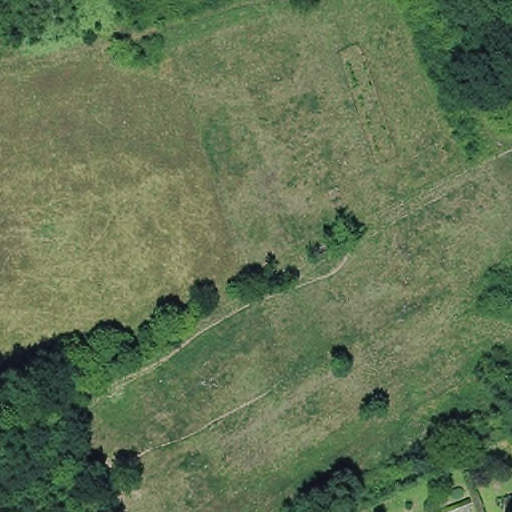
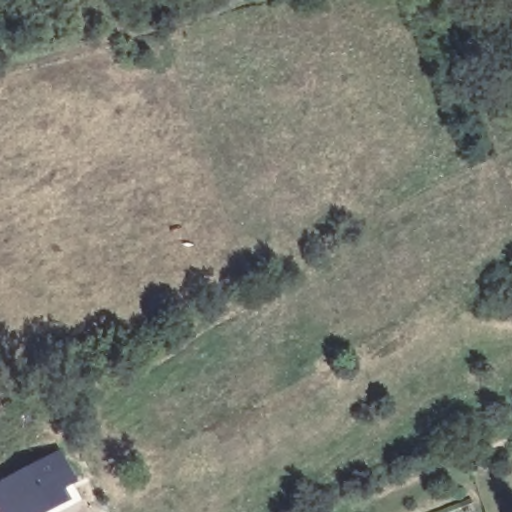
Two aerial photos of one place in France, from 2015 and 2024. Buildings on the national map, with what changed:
new [(60,449),(78,483),(68,488),(73,497),(75,496),(76,497),(50,512),(0,512),(0,480),(60,449)]

